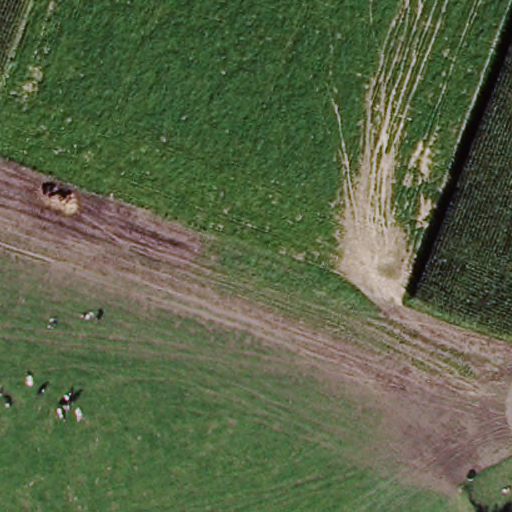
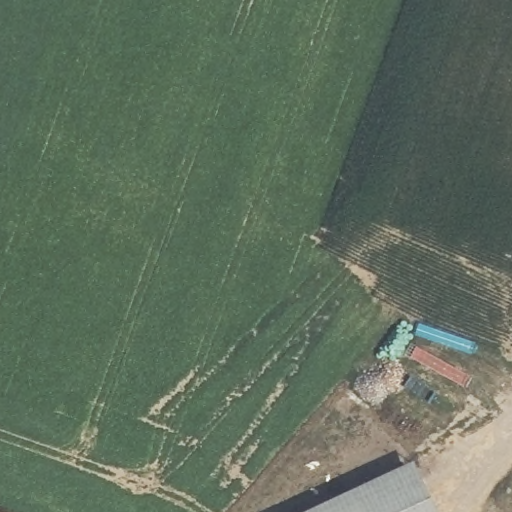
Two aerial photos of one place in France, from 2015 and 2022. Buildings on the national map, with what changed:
new [(415,463),(439,512),(312,512),(415,463)]

